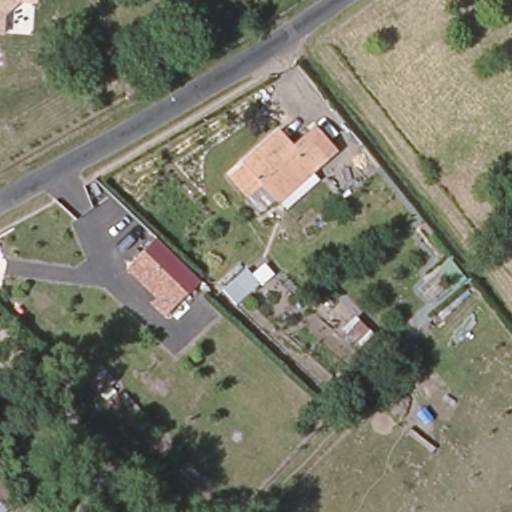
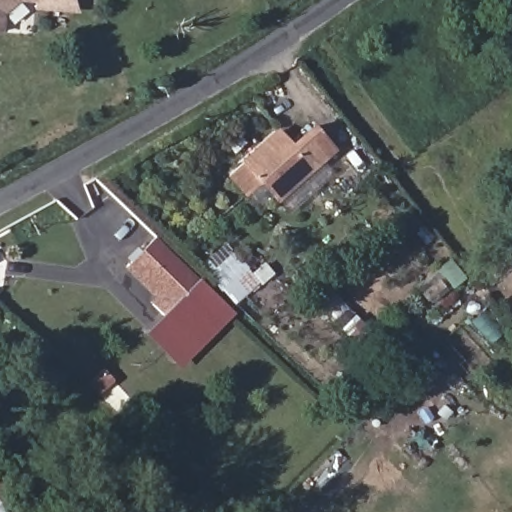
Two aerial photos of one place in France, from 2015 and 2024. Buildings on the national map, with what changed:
unchanged [(1,12),(0,19),(0,0),(13,0),(1,12)]
new [(80,12),(35,10),(34,0),(76,0),(80,12)]
unchanged [(245,163),(251,170),(267,157),(260,150),(278,135),(291,149),(315,127),(338,149),(285,200),(270,186),(252,201),(230,176),(245,163)]
new [(157,239),(198,277),(236,313),(181,369),(143,334),(162,317),(163,318),(188,291),(147,251),(157,239)]
unchanged [(163,318),(147,302),(155,295),(128,268),(147,251),(188,291),(163,318)]
unchanged [(237,305),(224,288),(251,267),(262,284),(237,305)]
unchanged [(1,394),(0,393),(0,375),(4,371),(0,367),(0,362),(11,350),(15,353),(24,345),(36,356),(1,394)]
unchanged [(8,502),(0,509),(0,472),(19,491),(8,502)]

